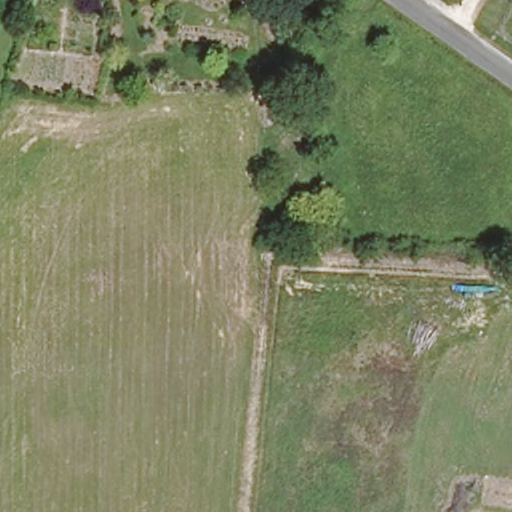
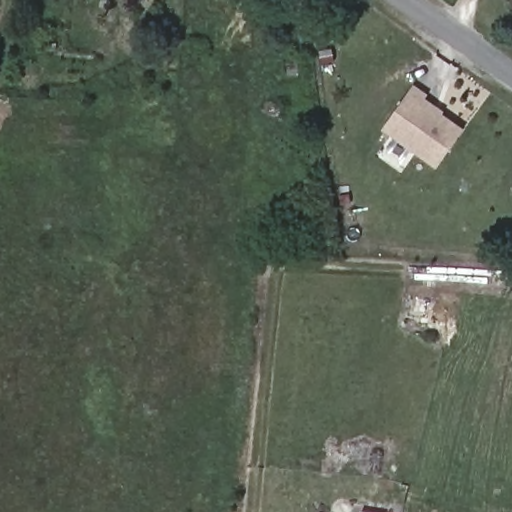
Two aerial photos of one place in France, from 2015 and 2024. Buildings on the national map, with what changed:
new [(422,92),(418,98),(459,126),(433,164),(378,125),(408,82),(422,92)]

